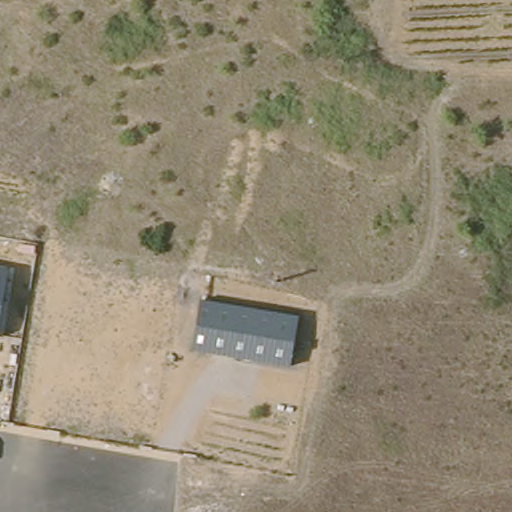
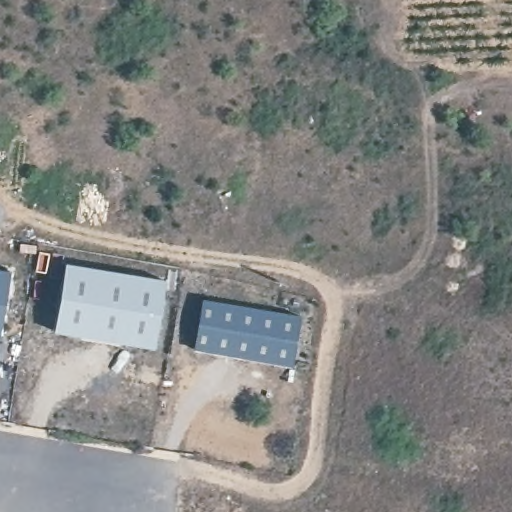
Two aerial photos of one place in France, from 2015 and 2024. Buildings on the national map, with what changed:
new [(70,261),(171,278),(160,345),(60,328),(70,261)]
unchanged [(0,265),(8,266),(0,329),(0,265)]
unchanged [(291,362),(193,348),(200,299),(300,314),(291,362)]

